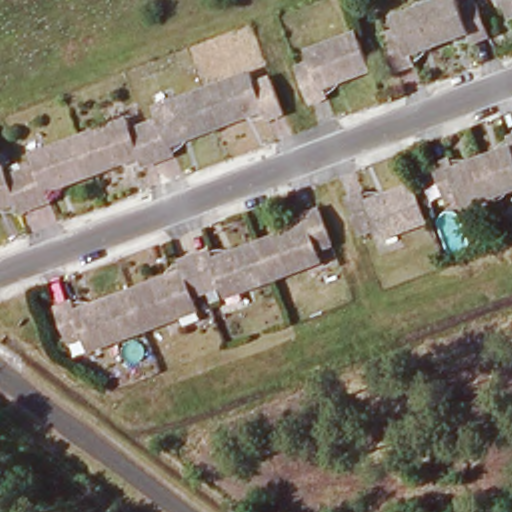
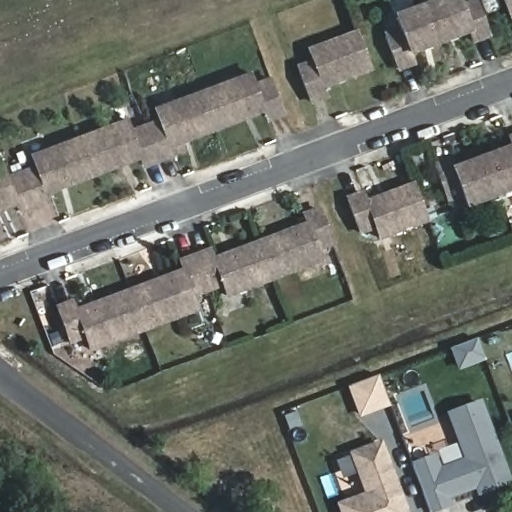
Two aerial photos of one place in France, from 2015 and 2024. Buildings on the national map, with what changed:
unchanged [(491,39),(475,44),(471,35),(413,56),(416,65),(400,71),(388,39),(405,32),(400,20),(455,0),(460,0),(464,11),(479,5),(491,39)]
unchanged [(507,0),(512,0),(512,13),(507,0)]
unchanged [(296,71),(314,65),(310,54),(356,37),(367,72),(321,90),(324,99),(308,104),(296,71)]
unchanged [(10,179),(41,167),(37,157),(130,123),(134,132),(163,121),(160,111),(213,91),(255,78),(258,87),(274,81),(286,115),(270,120),(266,112),(174,146),(177,156),(146,167),(143,160),(51,192),(54,201),(22,214),(19,205),(0,211),(0,172),(7,169),(10,179)]
unchanged [(510,142),(512,142),(512,146),(510,142)]
unchanged [(467,207),(463,197),(448,204),(435,170),(452,165),(455,174),(512,152),(512,190),(467,207)]
unchanged [(364,197),(368,206),(414,189),(426,221),(380,239),(377,230),(360,235),(348,202),(364,197)]
unchanged [(316,247),(320,257),(228,292),(224,283),(194,294),(197,303),(92,344),(88,335),(70,342),(58,308),(75,301),(78,310),(184,270),(180,261),(212,250),(215,258),(308,224),(304,215),(321,209),(333,242),(316,247)]
new [(428,456),(433,470),(461,460),(444,413),(474,402),(504,481),(474,493),(471,485),(440,497),(443,504),(424,511),(406,465),(428,456)]
new [(346,455),(373,443),(400,512),(336,512),(333,505),(361,495),(346,455)]

